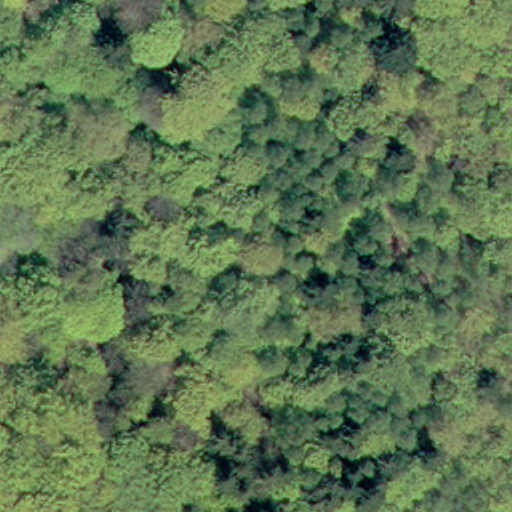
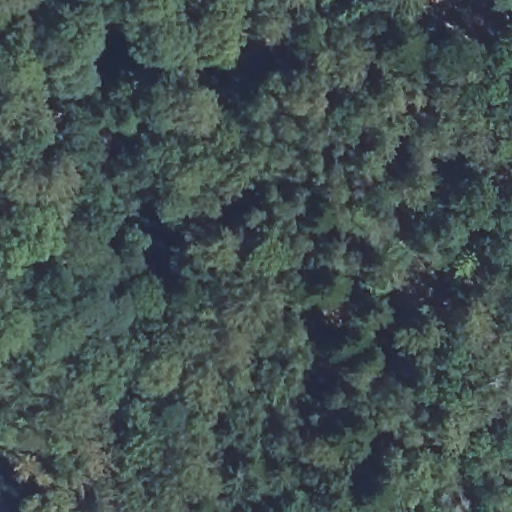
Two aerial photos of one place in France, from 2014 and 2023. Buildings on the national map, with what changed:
[]

